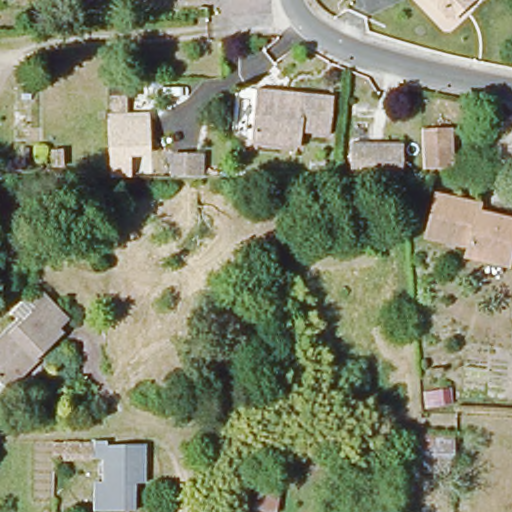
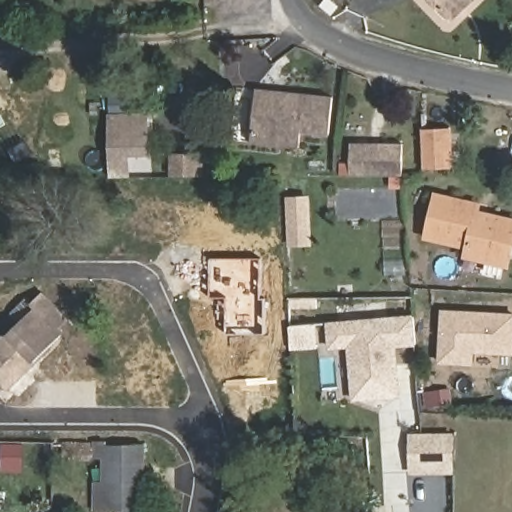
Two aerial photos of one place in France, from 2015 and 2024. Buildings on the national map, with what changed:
unchanged [(463,3),(455,12),(446,12),(442,14),(428,0),(463,0),(463,3)]
unchanged [(257,86),(354,97),(351,126),(350,136),(322,133),(300,131),(298,146),(252,141),(253,126),(257,86)]
unchanged [(149,112),(151,156),(131,157),(131,178),(110,178),(108,113),(109,97),(127,95),(127,113),(149,112)]
unchanged [(450,128),(452,168),(424,169),(422,146),(422,129),(450,128)]
unchanged [(351,144),(402,143),(402,175),(351,176),(351,144)]
new [(171,154),(198,153),(198,177),(171,177),(171,154)]
unchanged [(97,179),(99,179),(99,194),(97,194),(69,194),(69,179),(97,179)]
unchanged [(478,213),(512,221),(512,250),(508,265),(466,256),(467,246),(427,237),(436,196),(480,206),(478,213)]
new [(261,257),(261,299),(266,299),(265,333),(227,333),(227,297),(212,296),(212,258),(261,257)]
unchanged [(60,329),(64,334),(6,389),(0,383),(0,341),(21,322),(13,314),(27,300),(31,304),(44,292),(70,320),(60,329)]
new [(470,365),(437,364),(441,309),(512,312),(512,355),(471,353),(470,365)]
new [(415,319),(416,346),(387,349),(389,368),(397,367),(398,398),(354,401),(352,370),(356,370),(355,347),(331,349),(329,326),(415,319)]
unchanged [(423,435),(452,435),(451,470),(412,470),(412,435),(423,435)]
unchanged [(337,436),(337,447),(315,448),(315,437),(337,436)]
unchanged [(104,451),(154,450),(155,467),(145,468),(146,489),(136,489),(137,507),(106,508),(104,464),(54,464),(54,448),(104,447),(104,451)]
unchanged [(275,512),(270,512),(255,509),(259,484),(280,488),(275,512)]
unchanged [(399,487),(399,500),(373,500),(373,487),(399,487)]
unchanged [(393,512),(376,512),(376,504),(393,504),(393,512)]

